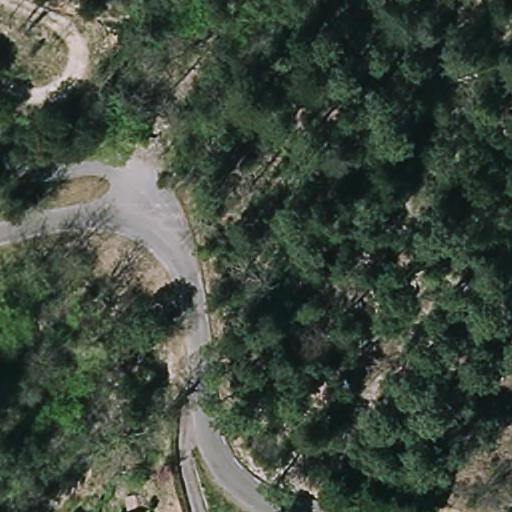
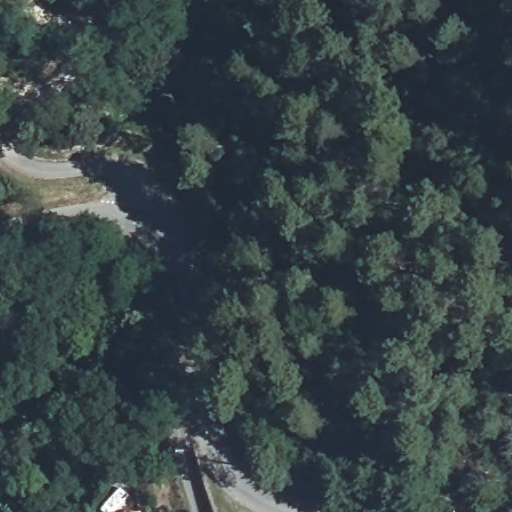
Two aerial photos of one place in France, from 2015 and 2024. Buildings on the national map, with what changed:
[]

